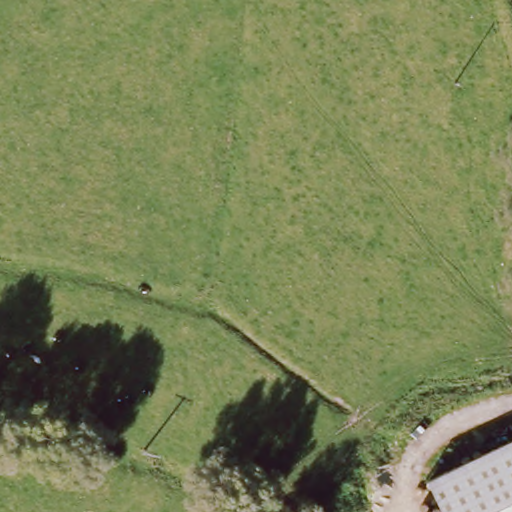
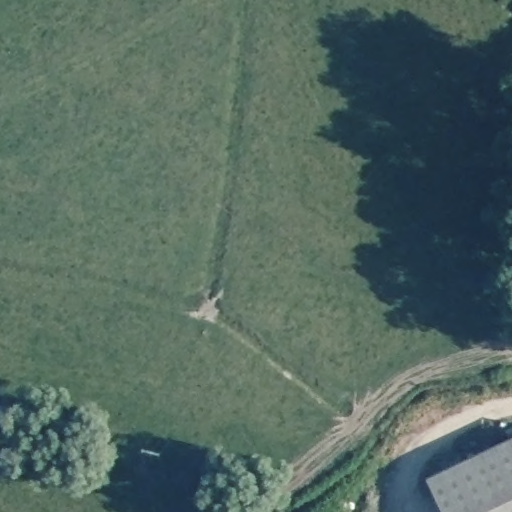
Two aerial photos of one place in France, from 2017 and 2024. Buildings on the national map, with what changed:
unchanged [(512,435),(512,512),(443,512),(426,477),(512,435)]

